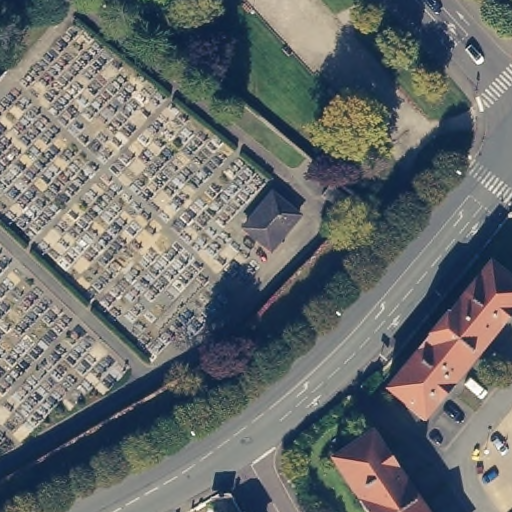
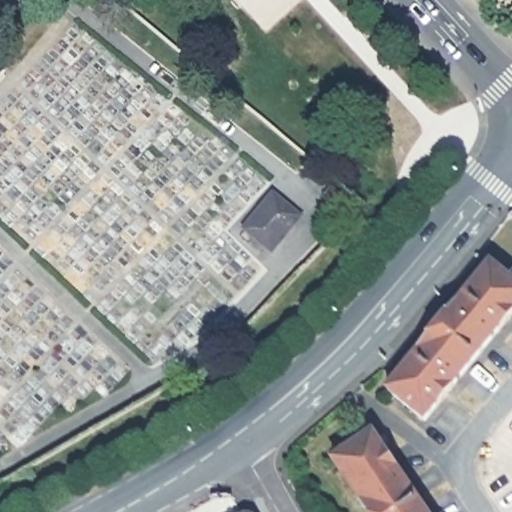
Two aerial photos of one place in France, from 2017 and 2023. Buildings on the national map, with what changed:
unchanged [(5,71),(0,77),(0,65),(5,71)]
unchanged [(345,214),(342,211),(323,196),(331,185),(354,203),(345,214)]
unchanged [(300,212),(273,245),(246,223),(273,190),(300,212)]
unchanged [(491,258),(512,275),(512,310),(425,416),(387,385),(491,258)]
unchanged [(378,428),(435,512),(377,512),(338,455),(378,428)]

